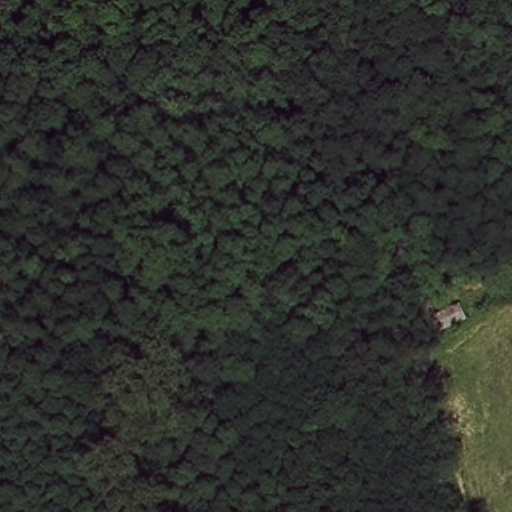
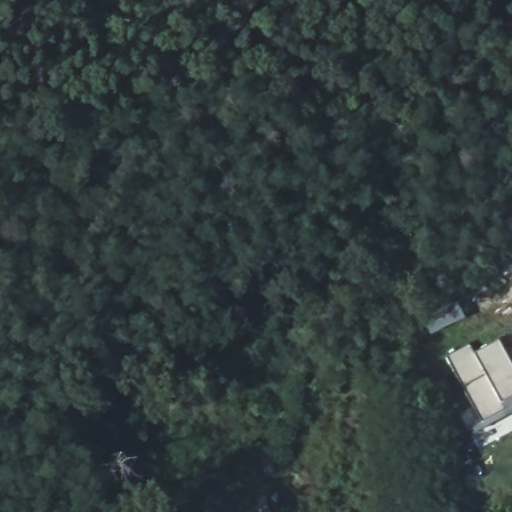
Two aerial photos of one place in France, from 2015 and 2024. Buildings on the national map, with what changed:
new [(474,352),(499,338),(504,347),(512,344),(512,414),(476,433),(473,428),(481,423),(446,357),(471,344),(474,352)]

